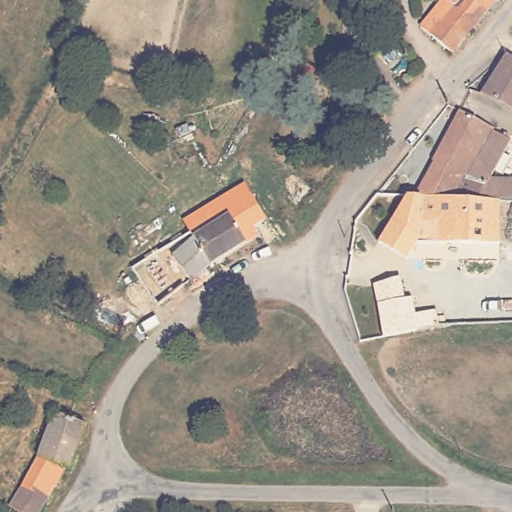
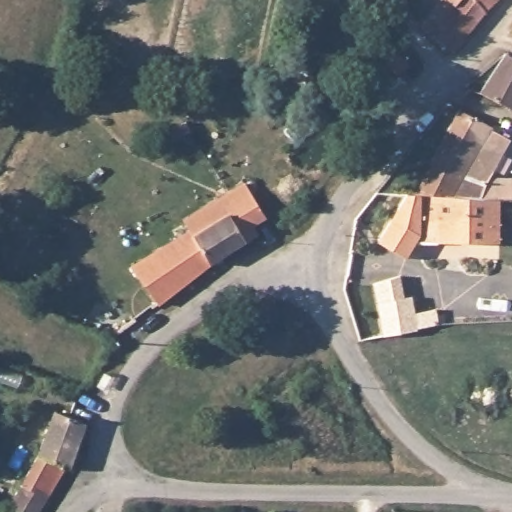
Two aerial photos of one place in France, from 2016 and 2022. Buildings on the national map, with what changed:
unchanged [(440,0),(495,0),(494,1),(455,48),(443,39),(421,22),(440,0)]
unchanged [(512,110),(477,96),(507,54),(512,56),(512,110)]
unchanged [(511,141),(492,177),(512,178),(512,201),(501,201),(426,197),(420,196),(436,165),(431,162),(458,111),(465,114),(496,127),(494,134),(511,141)]
unchanged [(137,278),(180,247),(176,240),(193,230),(189,223),(220,203),(225,211),(250,195),(257,206),(265,220),(252,228),(256,235),(155,307),(137,278)]
unchanged [(420,196),(426,197),(501,201),(500,244),(437,243),(437,222),(423,222),(421,222),(421,232),(421,237),(420,238),(413,249),(406,259),(396,253),(380,242),(399,212),(409,196),(420,196)]
unchanged [(443,325),(440,325),(422,329),(385,336),(380,305),(379,305),(375,283),(402,277),(407,299),(415,297),(418,315),(440,311),(443,325)]
unchanged [(56,415),(67,418),(87,425),(70,469),(64,472),(42,512),(18,512),(11,509),(34,465),(56,415)]

